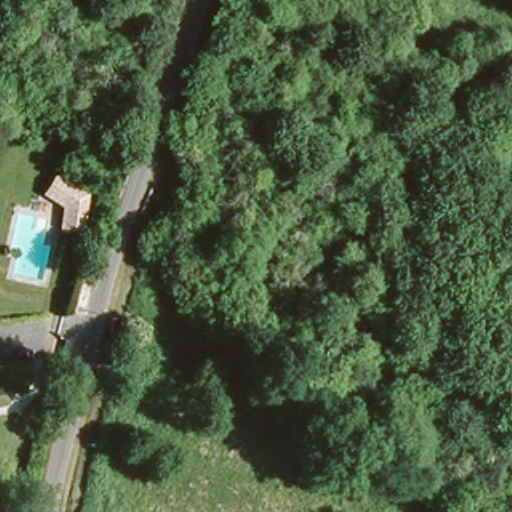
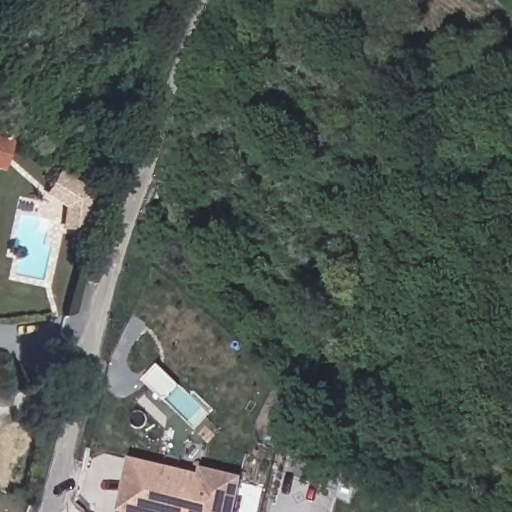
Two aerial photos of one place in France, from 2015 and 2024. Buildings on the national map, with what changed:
unchanged [(85,234),(60,229),(64,206),(44,195),(55,173),(92,193),(85,234)]
new [(201,478),(202,471),(239,479),(232,512),(123,512),(133,465),(201,478)]

